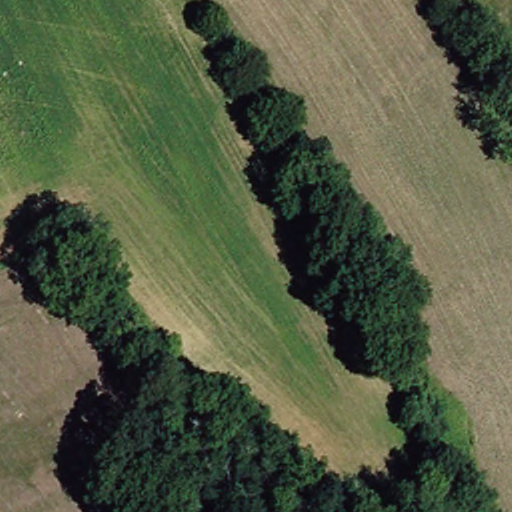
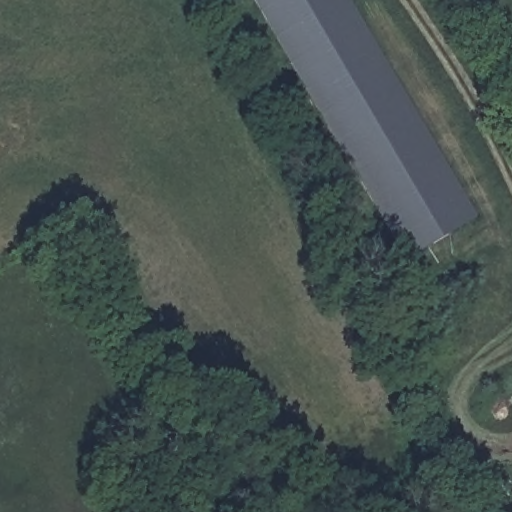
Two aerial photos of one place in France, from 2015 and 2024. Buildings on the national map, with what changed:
new [(409,258),(255,0),(349,0),(479,216),(409,258)]

